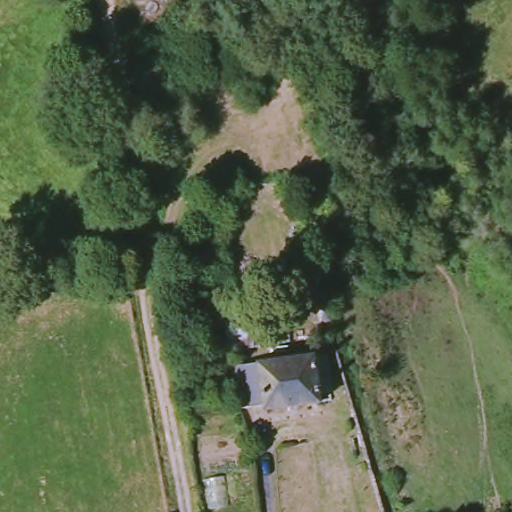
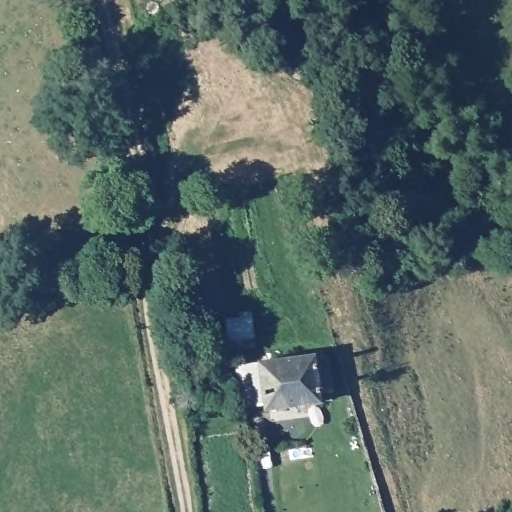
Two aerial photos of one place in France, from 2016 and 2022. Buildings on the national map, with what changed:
unchanged [(238,317),(238,325),(254,328),(254,343),(229,343),(222,322),(238,317)]
unchanged [(244,371),(335,358),(335,395),(321,397),(320,407),(269,412),(267,406),(245,405),(244,371)]

